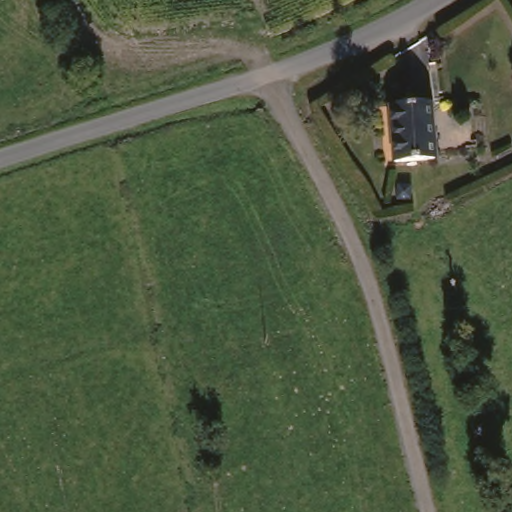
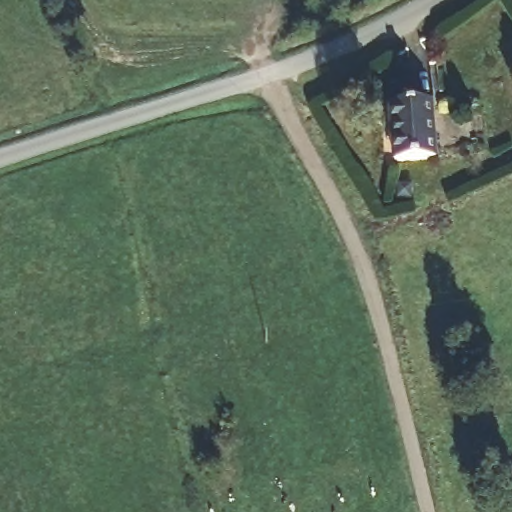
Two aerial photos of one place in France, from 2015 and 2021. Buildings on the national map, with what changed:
unchanged [(395,162),(390,107),(430,105),(435,160),(395,162)]

